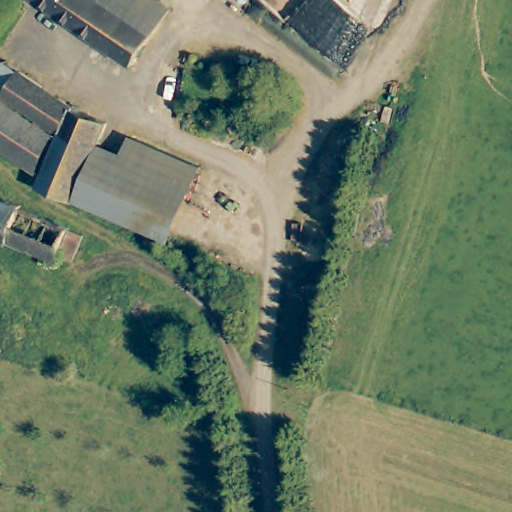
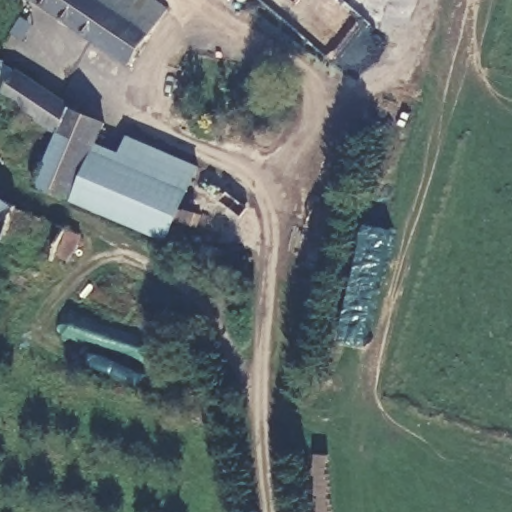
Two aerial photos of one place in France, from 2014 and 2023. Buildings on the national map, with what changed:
unchanged [(168,11),(131,66),(32,0),(151,0),(168,11)]
unchanged [(104,120),(92,149),(71,195),(69,200),(33,185),(57,127),(51,123),(1,94),(2,91),(0,90),(0,61),(2,58),(17,68),(72,103),(71,108),(104,120)]
unchanged [(46,135),(27,163),(0,147),(0,97),(49,127),(46,135)]
unchanged [(196,165),(166,237),(71,195),(92,149),(117,156),(126,133),(196,165)]
unchanged [(6,242),(0,240),(0,199),(18,207),(17,210),(6,242)]
unchanged [(74,251),(69,264),(55,259),(54,262),(6,242),(17,210),(66,229),(65,232),(79,237),(74,251)]

